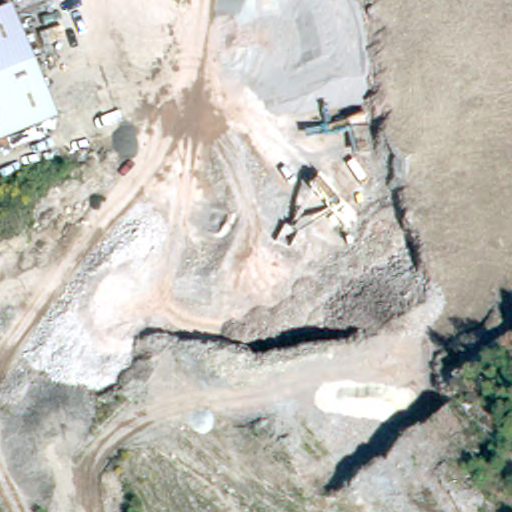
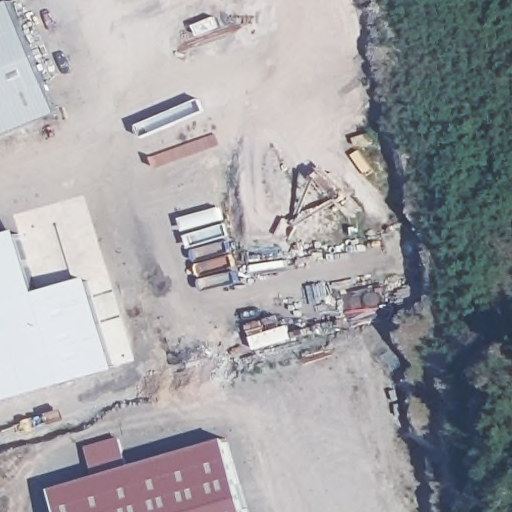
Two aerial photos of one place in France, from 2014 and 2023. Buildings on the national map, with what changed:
unchanged [(8,0),(11,0),(58,108),(0,134),(0,4),(8,0)]
new [(19,229),(66,382),(0,402),(0,234),(19,229)]
new [(58,492),(99,479),(92,451),(120,442),(128,469),(228,441),(248,512),(63,512),(58,492)]

